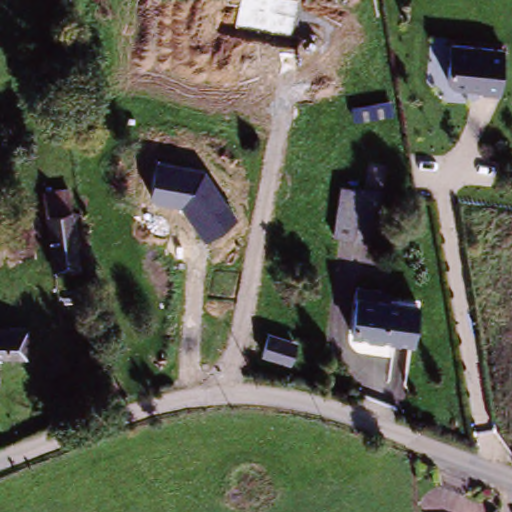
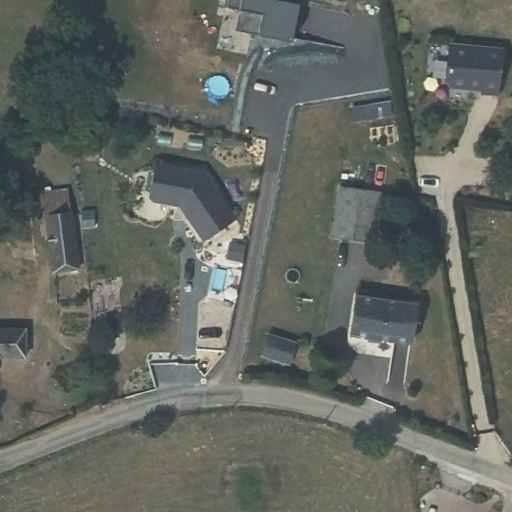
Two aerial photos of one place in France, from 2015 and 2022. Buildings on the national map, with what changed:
new [(300,3),(291,42),(260,34),(236,29),(240,8),(229,6),(230,0),(289,0),(300,3)]
unchanged [(512,50),(507,95),(490,93),(491,90),(455,86),(460,45),(512,50)]
unchanged [(155,161),(204,170),(236,218),(205,241),(181,207),(148,200),(155,161)]
unchanged [(380,202),(375,239),(332,233),(337,196),(380,202)]
unchanged [(73,206),(76,245),(53,246),(50,209),(73,206)]
unchanged [(349,330),(353,292),(416,302),(412,340),(349,330)]
unchanged [(30,356),(0,354),(0,324),(30,323),(30,356)]
unchanged [(300,348),(295,367),(266,359),(270,338),(300,348)]

